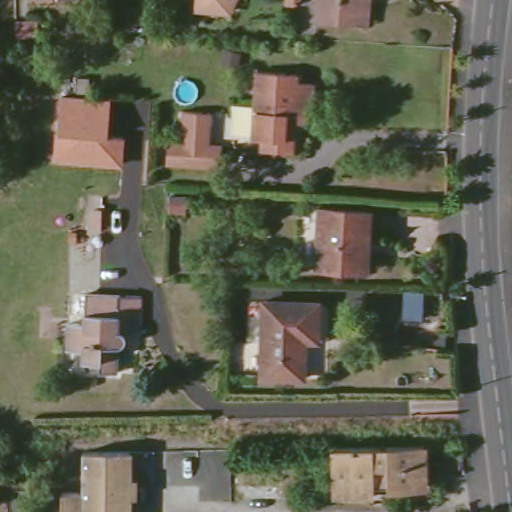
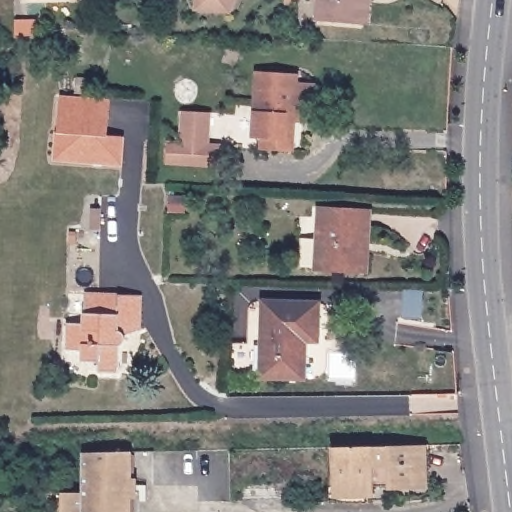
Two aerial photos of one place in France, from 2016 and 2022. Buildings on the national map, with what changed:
unchanged [(197,7),(198,0),(231,0),(230,9),(197,7)]
unchanged [(287,0),(299,0),(299,4),(294,4),(287,3),(287,0)]
unchanged [(317,19),(318,0),(361,0),(360,22),(317,19)]
unchanged [(13,36),(13,21),(37,20),(37,34),(13,36)]
unchanged [(260,147),(261,136),(250,135),(253,104),(257,69),(296,72),(295,80),(312,81),(310,105),(309,114),(292,114),(290,136),(290,139),(290,150),(276,149),(260,147)]
unchanged [(112,100),(110,135),(127,136),(124,166),(55,161),(61,95),(112,100)]
unchanged [(163,160),(165,140),(178,141),(181,109),(207,110),(204,143),(217,144),(217,164),(163,160)]
unchanged [(167,194),(182,194),(182,209),(167,209),(167,194)]
unchanged [(315,265),(318,205),(368,207),(367,242),(360,241),(359,267),(315,265)]
unchanged [(422,285),(422,315),(401,315),(402,285),(422,285)]
unchanged [(103,369),(103,358),(87,358),(87,349),(71,348),(72,321),(88,322),(90,292),(122,293),(122,311),(126,312),(130,313),(135,315),(138,317),(139,319),(140,321),(142,322),(142,325),(143,326),(143,328),(130,332),(130,334),(130,336),(129,339),(128,341),(126,343),(123,345),(120,345),(119,370),(103,369)]
unchanged [(260,375),(263,299),(317,301),(316,339),(303,339),(302,375),(260,375)]
unchanged [(337,445),(426,443),(427,482),(387,484),(387,478),(372,479),(372,491),(355,492),(337,492),(337,485),(337,445)]
unchanged [(60,493),(81,493),(82,455),(129,454),(129,512),(60,512),(60,493)]

